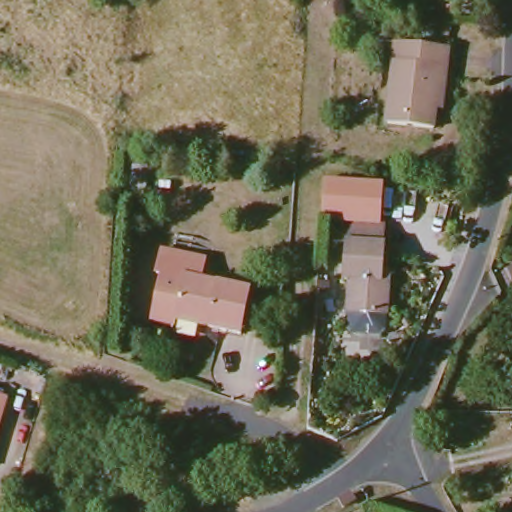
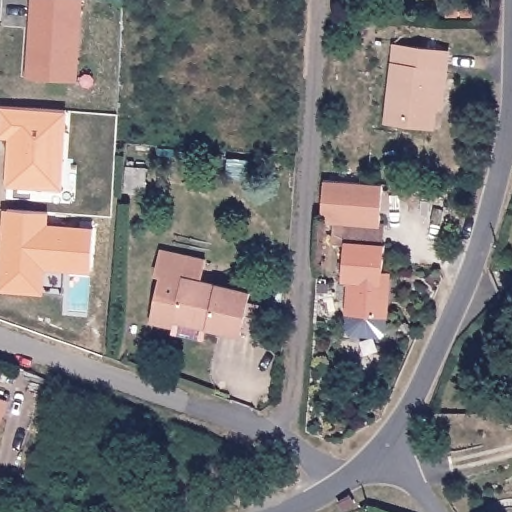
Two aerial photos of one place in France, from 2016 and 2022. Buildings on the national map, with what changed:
new [(28,46),(32,0),(81,0),(75,83),(36,81),(26,80),(28,46)]
unchanged [(430,105),(428,128),(382,122),(390,41),(446,46),(443,84),(441,106),(430,105)]
new [(45,187),(6,184),(10,135),(0,134),(0,116),(1,105),(65,109),(62,163),(60,188),(45,187)]
unchanged [(146,163),(143,190),(123,188),(125,162),(146,163)]
unchanged [(391,281),(391,331),(386,335),(356,334),(351,329),(354,278),(346,278),(346,241),(334,241),(334,218),(322,217),(324,176),(383,180),(381,221),(384,222),(384,269),(391,269),(391,281)]
new [(43,227),(90,231),(88,273),(40,270),(38,295),(0,292),(0,241),(3,242),(4,211),(44,214),(43,227)]
unchanged [(232,333),(216,329),(205,326),(206,318),(174,311),(171,322),(151,318),(148,313),(158,271),(152,270),(158,246),(201,257),(196,277),(244,289),(232,333)]
unchanged [(6,396),(0,421),(0,395),(6,396)]

